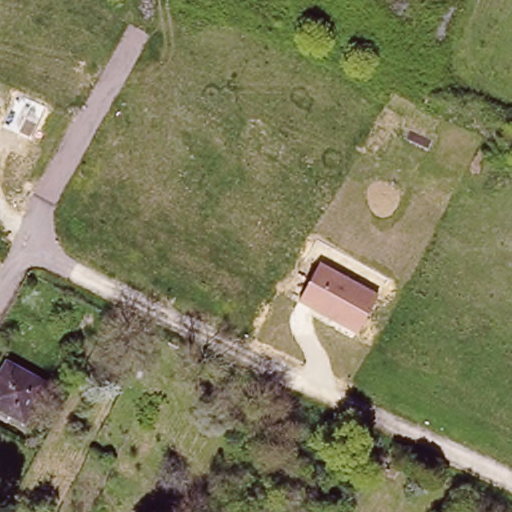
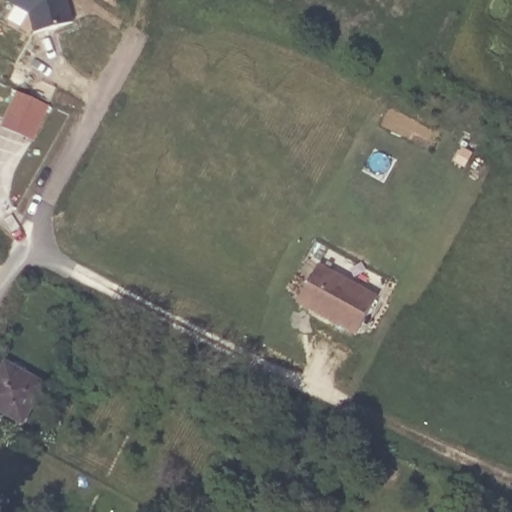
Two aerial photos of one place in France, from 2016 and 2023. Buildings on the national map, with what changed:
new [(28,13),(20,26),(8,19),(14,5),(6,0),(68,0),(73,20),(33,33),(28,13)]
new [(33,140),(0,125),(16,90),(49,106),(33,140)]
unchanged [(298,301),(319,263),(379,295),(358,334),(298,301)]
unchanged [(46,384),(25,422),(0,408),(0,377),(8,363),(46,384)]

